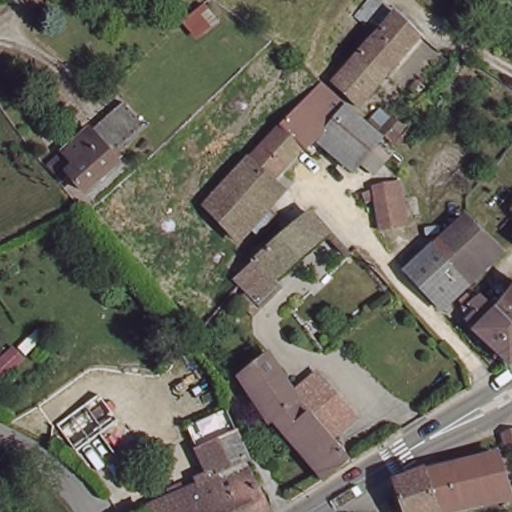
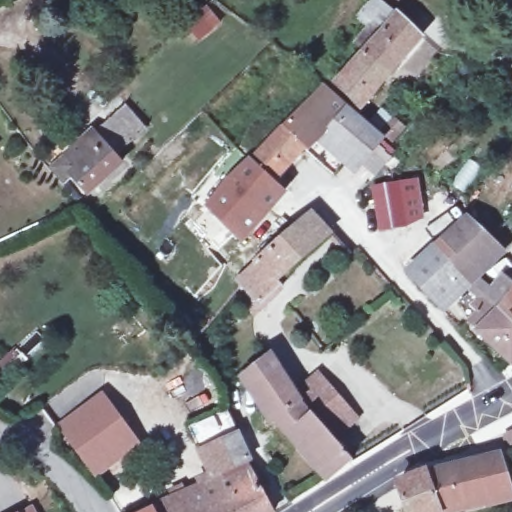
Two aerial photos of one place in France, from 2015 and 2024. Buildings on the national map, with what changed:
unchanged [(427,35),(368,103),(338,81),(397,11),(427,35)]
unchanged [(378,176),(367,167),(364,171),(326,135),(309,154),(283,128),(324,84),(389,143),(385,147),(396,156),(378,176)]
unchanged [(126,104),(147,128),(124,148),(131,156),(127,160),(127,165),(93,196),(75,175),(84,165),(73,153),(97,129),(126,104)]
unchanged [(309,154),(306,156),(279,186),(288,194),(243,240),(212,208),(283,128),(309,154)]
unchanged [(407,221),(378,226),(370,182),(400,177),(407,221)]
unchanged [(502,251),(482,270),(477,266),(469,274),(440,302),(414,271),(439,245),(469,215),(502,251)]
unchanged [(286,293),(266,310),(245,288),(248,285),(235,271),(272,244),(280,255),(314,223),(331,241),(281,287),(286,293)]
unchanged [(509,358),(465,319),(475,308),(470,304),(482,291),(497,306),(512,289),(512,356),(509,358)]
unchanged [(279,380),(295,400),(319,383),(350,426),(328,442),(346,465),(321,486),(320,487),(259,411),(240,381),(265,360),(279,380)]
demolished [(75,448),(59,422),(110,389),(127,414),(75,448)]
new [(58,426),(103,393),(141,448),(98,476),(58,426)]
unchanged [(187,494),(224,477),(207,445),(201,432),(226,419),(234,433),(249,471),(271,512),(149,512),(183,488),(187,494)]
unchanged [(479,512),(411,512),(403,493),(424,486),(453,477),(482,470),(502,467),(512,498),(512,504),(479,512)]

